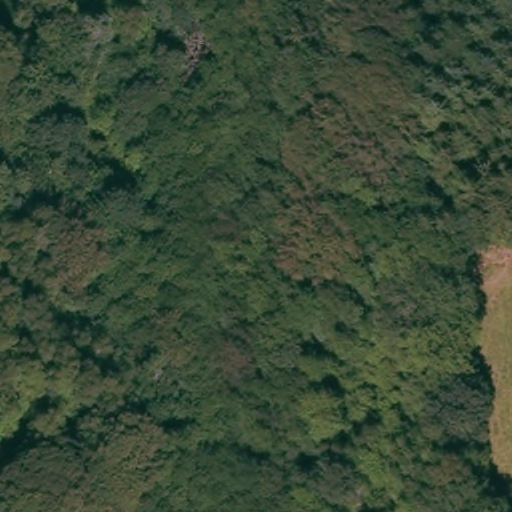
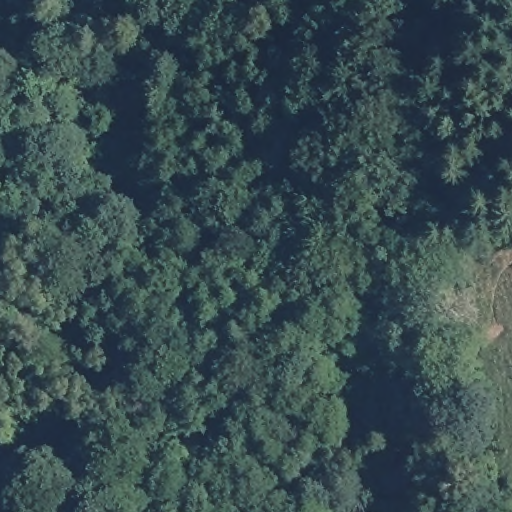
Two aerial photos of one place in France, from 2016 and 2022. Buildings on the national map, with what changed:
[]

